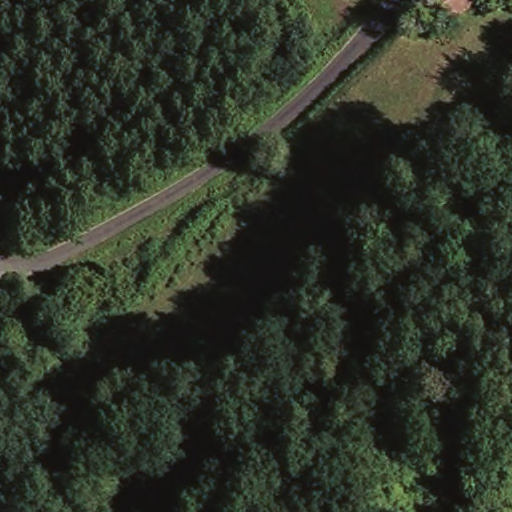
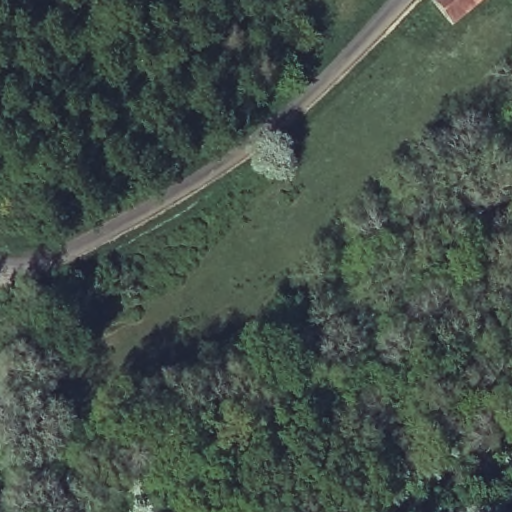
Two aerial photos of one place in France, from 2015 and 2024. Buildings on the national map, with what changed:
unchanged [(451,20),(433,0),(474,0),(451,20)]
unchanged [(152,178),(147,188),(137,185),(140,174),(152,178)]

